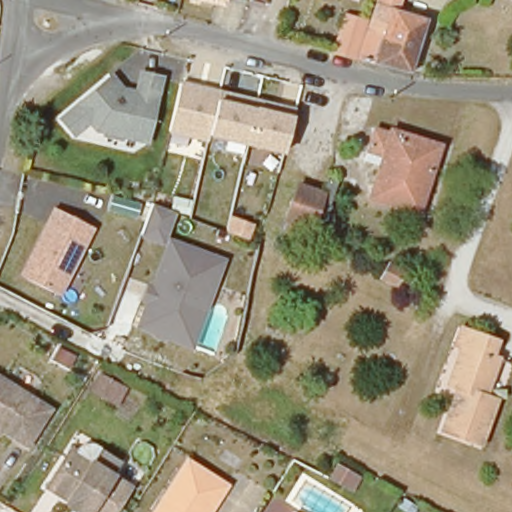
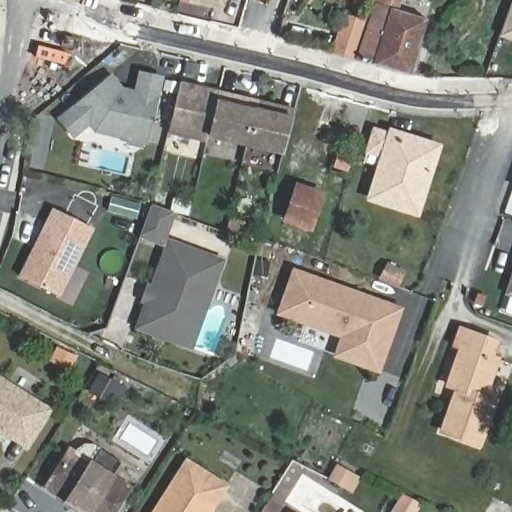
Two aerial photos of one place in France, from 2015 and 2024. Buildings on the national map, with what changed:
unchanged [(222,4),(205,0),(223,0),(222,4)]
new [(500,37),(512,3),(512,41),(500,37)]
unchanged [(410,74),(358,60),(357,60),(377,4),(410,14),(426,19),(410,74)]
unchanged [(345,16),(365,23),(352,58),(335,53),(345,16)]
unchanged [(124,137),(102,132),(96,130),(89,122),(74,135),(61,119),(111,78),(113,80),(120,89),(120,94),(127,95),(130,92),(136,93),(140,74),(160,78),(150,125),(146,142),(124,137)]
unchanged [(295,116),(286,155),(211,137),(209,144),(169,135),(182,80),(297,107),(295,116)]
unchanged [(374,129),(390,134),(391,132),(438,147),(417,214),(370,197),(382,157),(367,152),(374,129)]
unchanged [(277,234),(281,223),(293,185),(317,192),(322,180),(331,183),(314,234),(311,245),(277,234)]
unchanged [(226,258),(195,350),(136,330),(164,247),(141,239),(152,205),(177,214),(170,237),(226,258)]
unchanged [(24,277),(39,248),(33,246),(52,207),(91,227),(57,295),(24,277)]
new [(380,376),(333,358),(338,337),(276,316),(293,266),(405,306),(380,376)]
new [(506,297),(512,278),(512,299),(506,297)]
unchanged [(457,347),(451,345),(457,330),(492,343),(487,357),(493,359),(479,397),(491,401),(475,445),(438,431),(453,388),(443,385),(457,347)]
unchanged [(121,383),(112,401),(94,392),(102,374),(121,383)]
unchanged [(27,446),(1,430),(0,431),(0,378),(50,410),(27,446)]
unchanged [(72,502),(47,487),(71,450),(129,487),(113,512),(86,512),(82,510),(81,512),(78,512),(70,507),(72,502)]
unchanged [(226,487),(210,512),(155,512),(187,462),(226,487)]
unchanged [(353,490),(349,487),(332,478),(339,465),(357,474),(361,477),(353,490)]

